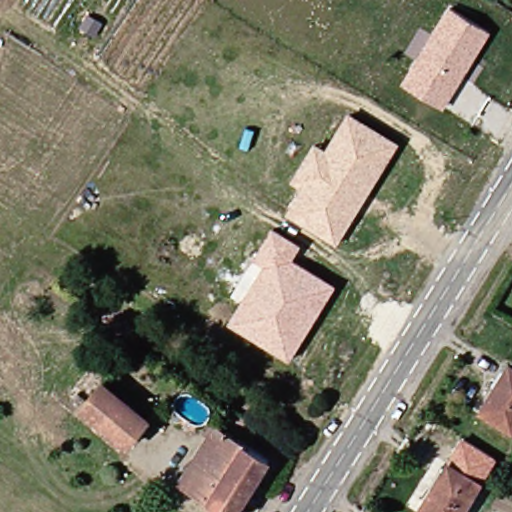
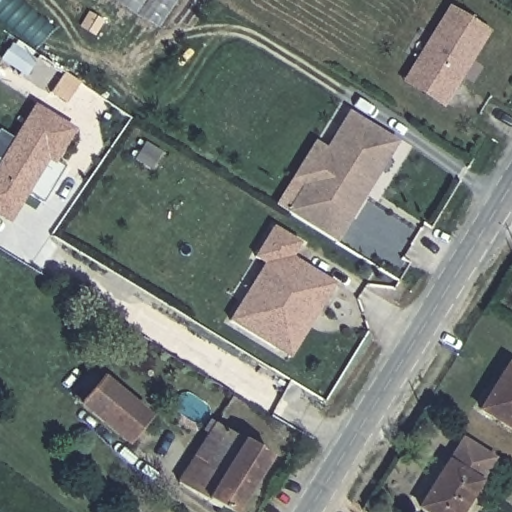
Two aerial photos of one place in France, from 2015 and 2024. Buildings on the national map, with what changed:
new [(116,0),(177,0),(157,29),(116,0)]
unchanged [(402,83),(448,7),(490,33),(443,109),(402,83)]
new [(2,61),(14,42),(62,76),(65,72),(82,83),(67,104),(2,61)]
new [(77,129),(59,159),(52,155),(31,191),(15,218),(0,208),(0,174),(41,108),(77,129)]
unchanged [(314,143),(326,150),(348,113),(399,144),(337,245),(286,214),(302,187),(291,181),(314,143)]
unchanged [(265,266),(252,259),(271,228),(302,245),(292,260),(336,285),(289,361),(229,324),(265,266)]
unchanged [(512,377),(512,416),(502,432),(472,412),(475,407),(469,403),(489,373),(495,377),(500,369),(512,377)]
unchanged [(92,385),(137,422),(119,446),(74,408),(92,385)]
unchanged [(169,486),(182,463),(199,435),(203,428),(197,424),(201,420),(260,458),(227,512),(211,512),(169,486)]
unchanged [(472,483),(452,512),(413,512),(410,510),(415,504),(407,500),(429,467),(435,471),(441,463),(472,483)]

